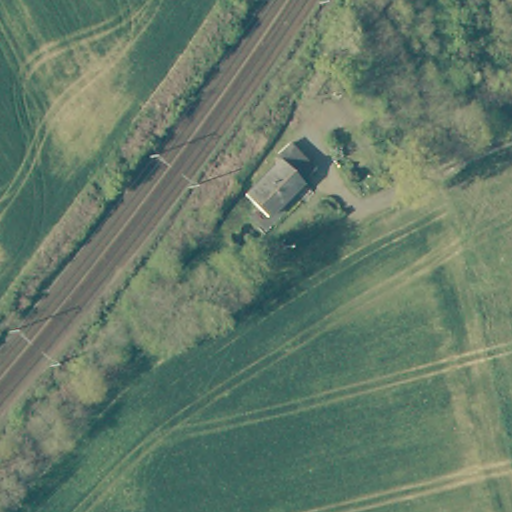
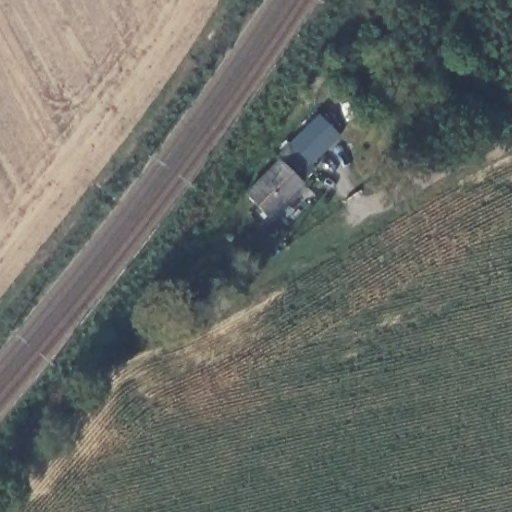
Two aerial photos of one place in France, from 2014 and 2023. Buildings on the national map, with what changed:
unchanged [(325,75),(308,101),(298,94),(315,69),(325,75)]
new [(315,113),(337,134),(308,163),(287,143),(286,142),(315,113)]
unchanged [(278,160),(275,156),(288,143),(314,169),(268,216),(245,194),(278,160)]

